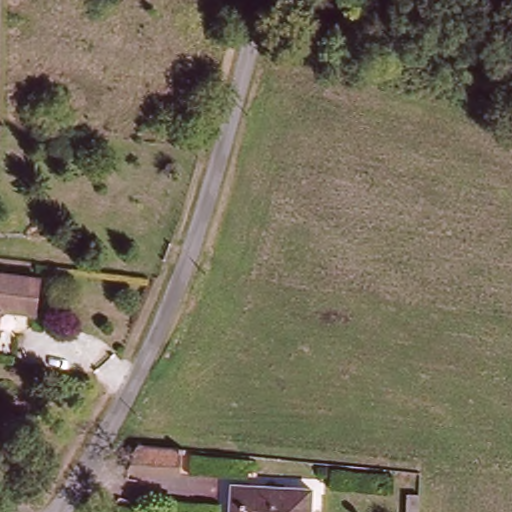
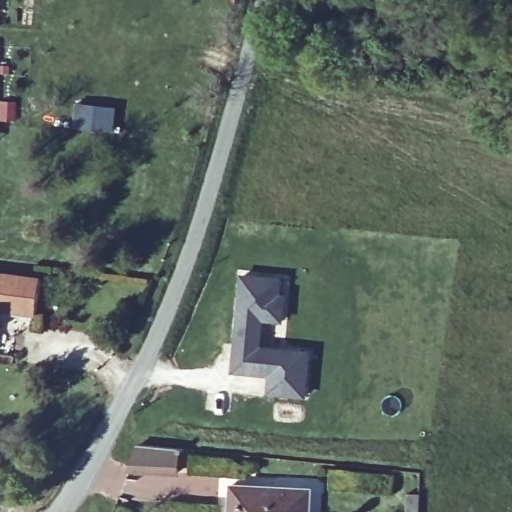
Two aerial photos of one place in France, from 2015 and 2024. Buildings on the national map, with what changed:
new [(81,107),(114,110),(111,132),(79,130),(81,107)]
unchanged [(38,321),(0,318),(0,276),(41,281),(38,321)]
new [(242,277),(281,281),(279,297),(284,298),(282,322),(262,321),(259,349),(309,354),(305,397),(269,394),(270,377),(233,373),(242,277)]
unchanged [(181,477),(131,475),(139,452),(184,457),(181,477)]
unchanged [(231,512),(234,486),(313,493),(311,512),(231,512)]
new [(419,496),(418,512),(406,512),(407,496),(419,496)]

